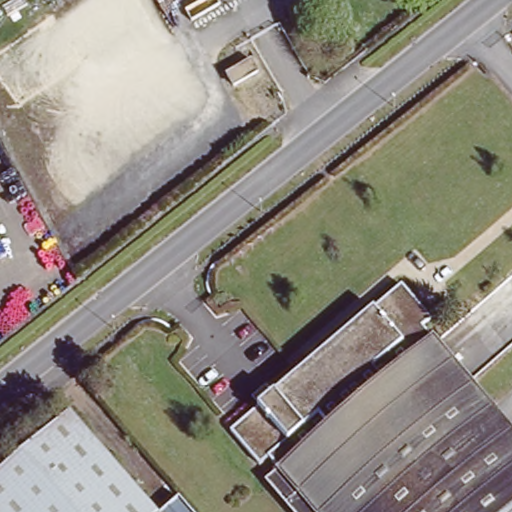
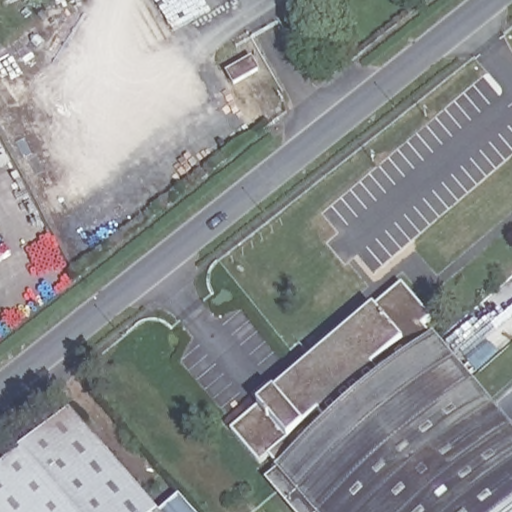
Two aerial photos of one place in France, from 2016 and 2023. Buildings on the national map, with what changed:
unchanged [(252,61),(260,73),(234,88),(226,76),(252,61)]
unchanged [(1,233),(0,234),(0,231),(1,233)]
unchanged [(269,453),(257,461),(228,426),(400,281),(429,314),(421,322),(432,335),(434,334),(512,425),(512,512),(317,512),(305,498),(292,509),(265,477),(278,465),(269,453)]
unchanged [(71,408),(157,509),(177,493),(193,512),(0,512),(0,468),(71,408)]
unchanged [(317,512),(295,512),(292,509),(305,498),(317,512)]

